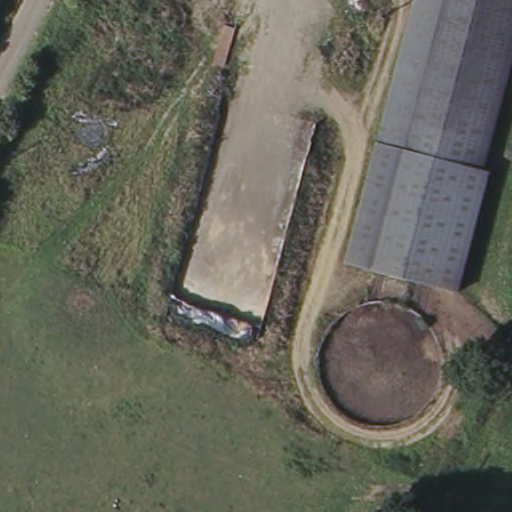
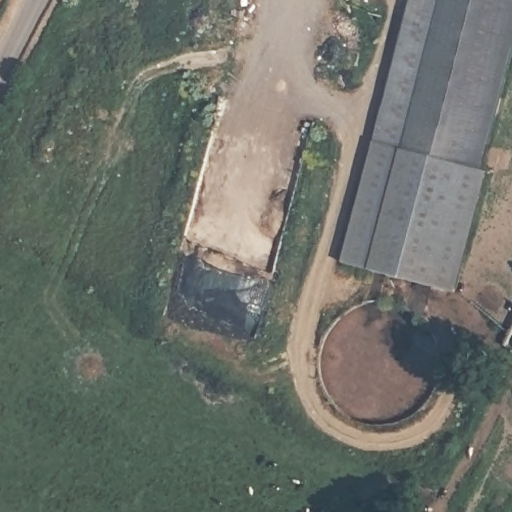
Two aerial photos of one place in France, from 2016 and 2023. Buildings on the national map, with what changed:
unchanged [(512,0),(512,50),(479,162),(484,164),(447,286),(345,261),(409,0),(512,0)]

